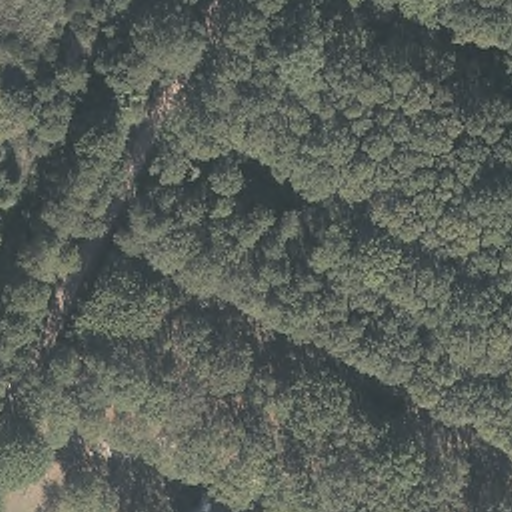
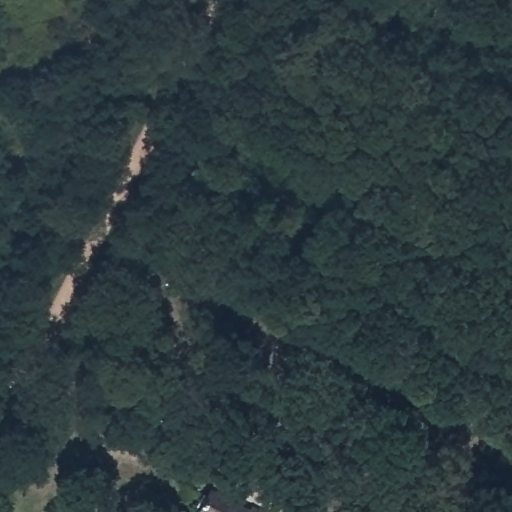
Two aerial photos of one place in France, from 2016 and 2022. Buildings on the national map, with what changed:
unchanged [(247,512),(249,510),(253,512),(197,512),(198,510),(196,502),(199,496),(207,493),(209,491),(247,512)]

